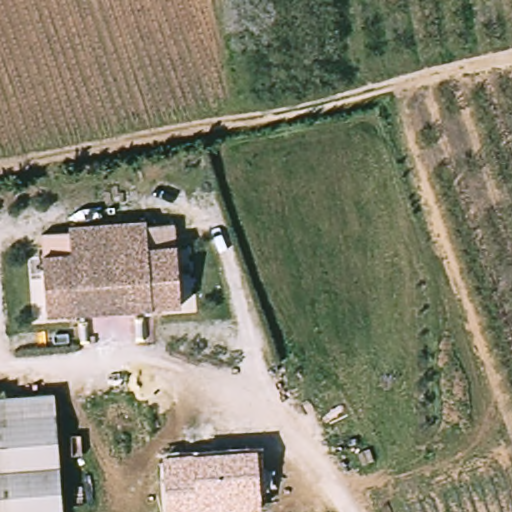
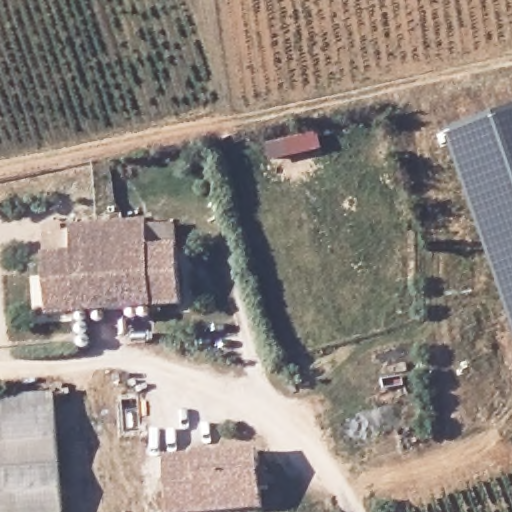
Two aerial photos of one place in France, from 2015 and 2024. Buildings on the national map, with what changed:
new [(512,111),(512,320),(447,133),(512,111)]
unchanged [(143,219),(146,246),(175,244),(180,303),(45,314),(40,254),(70,252),(67,225),(143,219)]
unchanged [(1,392),(52,388),(62,511),(55,512),(0,512),(0,412),(2,412),(1,392)]
unchanged [(2,412),(0,412),(0,392),(1,392),(2,412)]
unchanged [(262,511),(256,512),(164,512),(161,456),(257,448),(262,511)]

